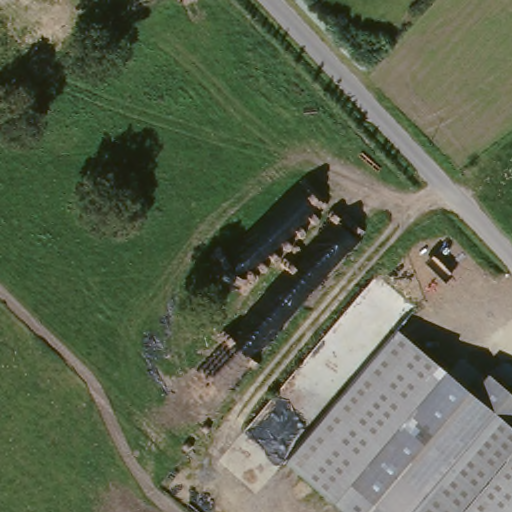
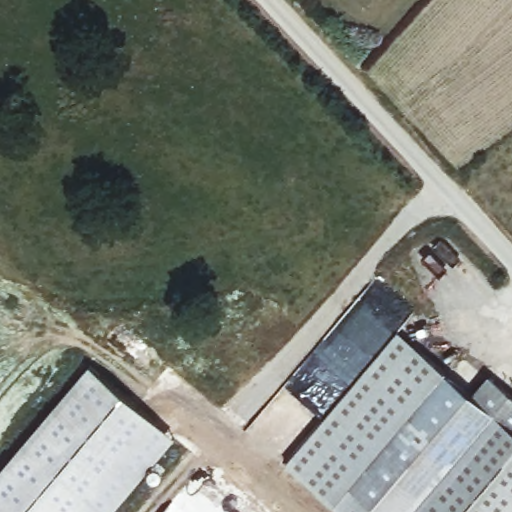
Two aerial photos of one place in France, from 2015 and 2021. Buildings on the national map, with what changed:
unchanged [(393,436),(348,485),(379,512),(344,512),(289,463),(397,333),(445,376),(393,436)]
new [(174,433),(103,512),(0,512),(0,461),(90,359),(174,433)]
unchanged [(475,402),(512,434),(512,458),(478,497),(464,512),(379,512),(348,485),(393,436),(445,376),(475,402)]
unchanged [(493,382),(512,398),(512,434),(475,402),(493,382)]
unchanged [(512,458),(512,512),(464,512),(478,497),(512,458)]

